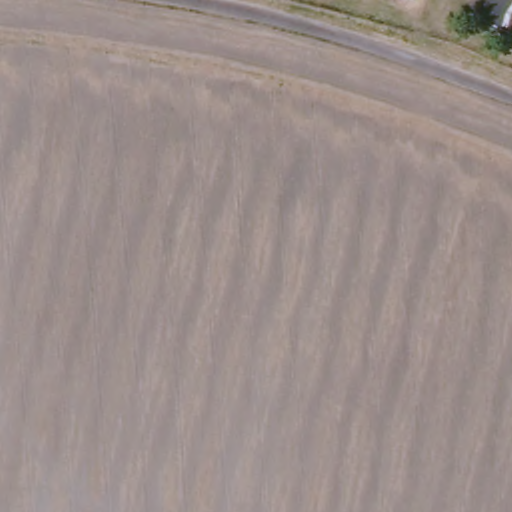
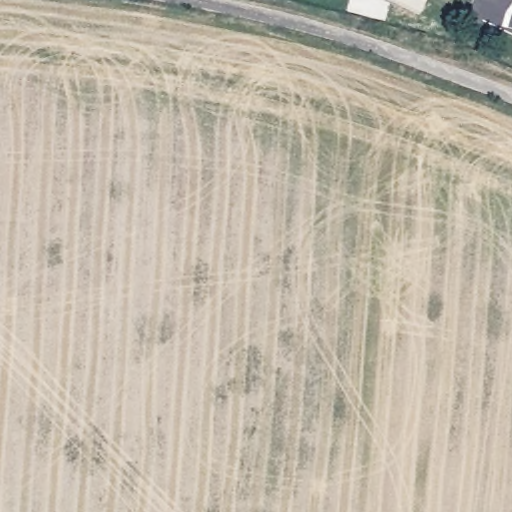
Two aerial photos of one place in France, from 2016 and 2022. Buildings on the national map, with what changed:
unchanged [(407,0),(410,0),(410,1),(407,0)]

